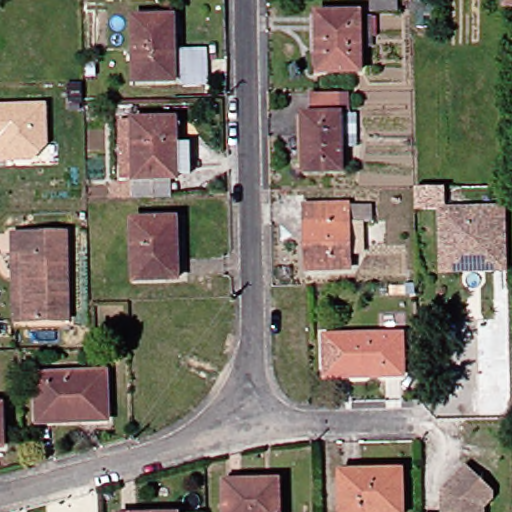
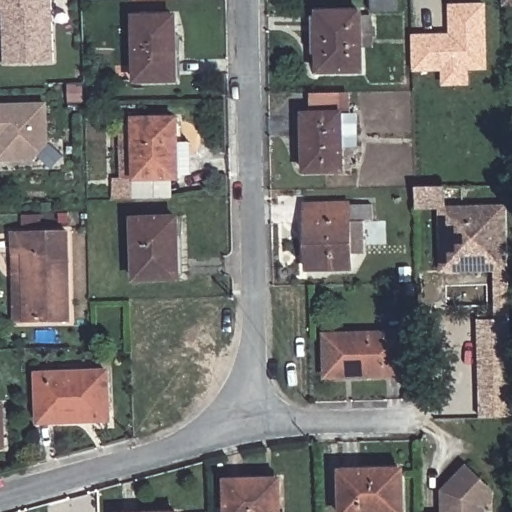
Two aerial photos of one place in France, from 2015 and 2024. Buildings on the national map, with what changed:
new [(0,66),(0,0),(51,0),(54,64),(0,66)]
unchanged [(374,0),(402,0),(402,15),(373,15),(374,0)]
unchanged [(512,0),(512,9),(505,9),(505,0),(512,0)]
new [(488,70),(470,70),(470,86),(442,87),(441,70),(413,72),(411,34),(449,34),(447,5),(487,3),(488,70)]
unchanged [(316,18),(321,18),(321,15),(365,15),(365,74),(322,75),(317,75),(316,18)]
unchanged [(177,86),(137,84),(137,22),(177,22),(177,86)]
unchanged [(48,145),(34,160),(0,162),(0,104),(47,103),(48,145)]
unchanged [(180,168),(180,172),(137,173),(137,115),(178,115),(178,117),(185,117),(186,135),(192,136),(193,168),(180,168)]
unchanged [(313,175),(313,168),(305,168),(304,120),(312,120),(349,119),(362,118),(362,139),(349,140),(350,175),(313,175)]
unchanged [(438,197),(418,197),(418,182),(438,182),(438,197)]
unchanged [(510,200),(511,251),(450,252),(449,201),(510,200)]
unchanged [(450,252),(511,251),(512,266),(443,267),(442,202),(449,201),(450,252)]
unchanged [(352,207),(377,206),(377,222),(353,223),(353,274),(310,275),(310,249),(310,224),(310,207),(352,207)]
unchanged [(137,285),(136,223),(179,223),(185,223),(186,280),(180,280),(180,284),(137,285)]
unchanged [(17,235),(72,232),(77,321),(31,323),(21,323),(17,254),(17,235)]
unchanged [(328,381),(329,340),(406,338),(406,379),(328,381)]
unchanged [(42,423),(40,376),(114,373),(117,412),(117,421),(90,421),(42,423)]
unchanged [(7,441),(7,450),(0,450),(0,408),(7,407),(7,441)]
unchanged [(426,511),(451,511),(451,500),(446,500),(446,485),(470,460),(496,484),(496,492),(479,508),(483,512),(426,512),(426,511)]
unchanged [(410,512),(349,512),(347,472),(350,472),(350,467),(406,465),(406,471),(410,471),(410,512)]
unchanged [(282,512),(228,512),(227,485),(228,480),(280,479),(280,485),(282,485),(282,512)]
unchanged [(124,512),(178,511),(178,512),(124,512)]

